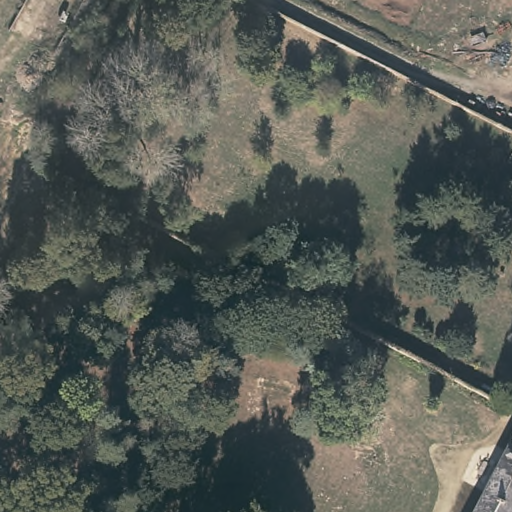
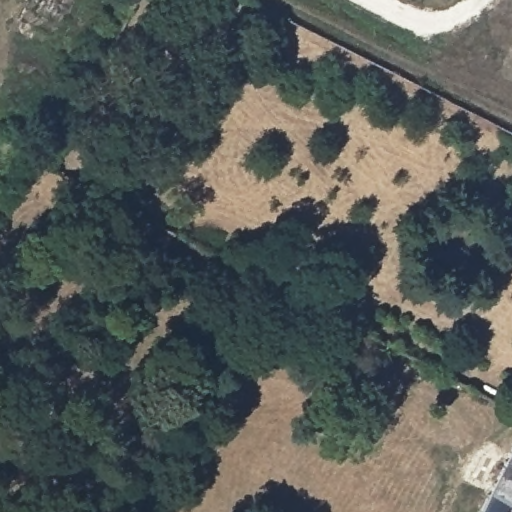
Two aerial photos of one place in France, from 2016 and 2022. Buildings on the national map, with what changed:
unchanged [(512,512),(470,512),(512,417),(512,512)]

